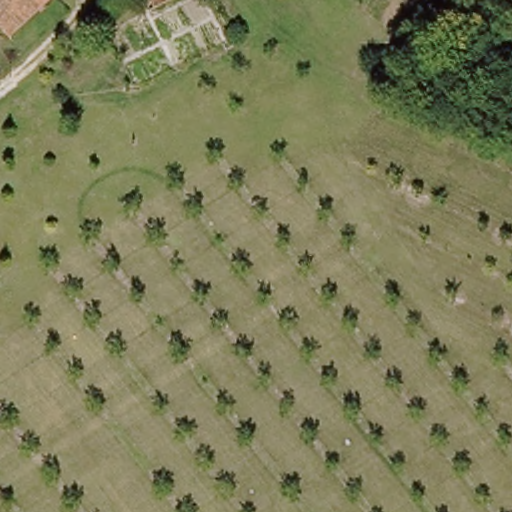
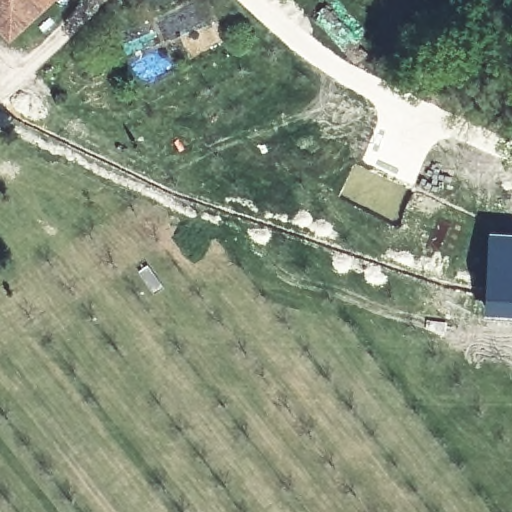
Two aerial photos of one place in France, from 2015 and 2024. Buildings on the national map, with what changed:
unchanged [(13,40),(0,25),(0,0),(59,0),(13,40)]
new [(487,229),(512,231),(512,315),(484,313),(487,229)]

